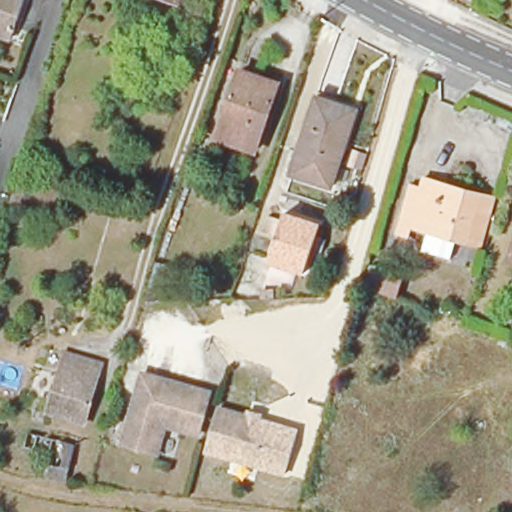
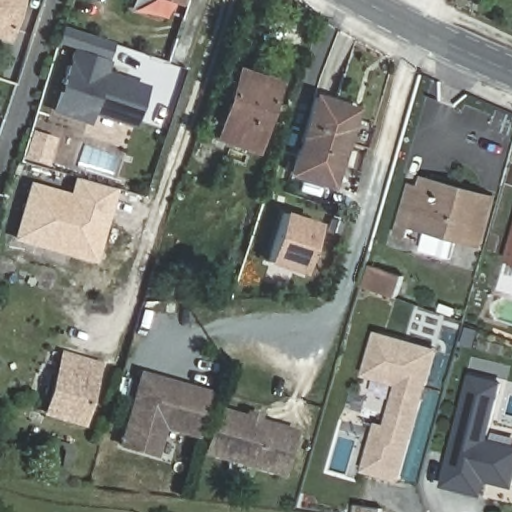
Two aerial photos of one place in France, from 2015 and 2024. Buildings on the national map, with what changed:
unchanged [(12,40),(0,36),(0,0),(24,0),(12,40)]
unchanged [(179,4),(168,0),(180,0),(179,4)]
new [(90,124),(54,112),(73,47),(58,42),(62,28),(112,44),(106,61),(109,62),(105,72),(147,84),(134,128),(93,114),(90,124)]
unchanged [(240,70),(280,84),(256,152),(216,138),(240,70)]
unchanged [(317,98),(357,110),(332,187),(292,174),(317,98)]
new [(50,163),(25,156),(33,130),(58,137),(50,163)]
new [(116,189),(96,262),(14,239),(31,180),(70,192),(74,176),(116,189)]
unchanged [(485,204),(471,253),(415,237),(412,245),(404,243),(410,219),(420,222),(426,198),(430,189),(485,204)]
unchanged [(283,213),(317,227),(298,274),(263,260),(283,213)]
unchanged [(505,266),(512,241),(512,269),(505,266)]
unchanged [(376,291),(363,287),(371,265),(405,278),(397,299),(397,300),(376,291)]
new [(400,482),(363,473),(375,422),(385,425),(395,386),(362,377),(375,331),(440,349),(400,482)]
unchanged [(65,352),(102,364),(85,424),(47,413),(65,352)]
unchanged [(211,391),(200,433),(166,424),(158,453),(124,443),(144,372),(211,391)]
new [(485,482),(482,497),(440,487),(469,374),(501,382),(487,439),(512,446),(512,489),(485,482)]
unchanged [(299,430),(286,476),(205,453),(219,407),(299,430)]
unchanged [(24,452),(28,437),(51,444),(75,450),(67,488),(41,481),(47,459),(24,452)]

